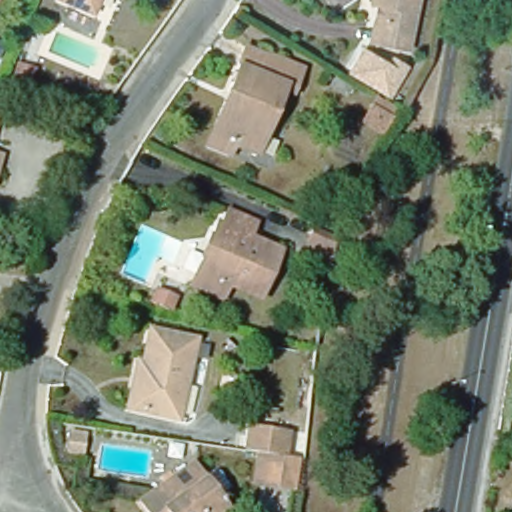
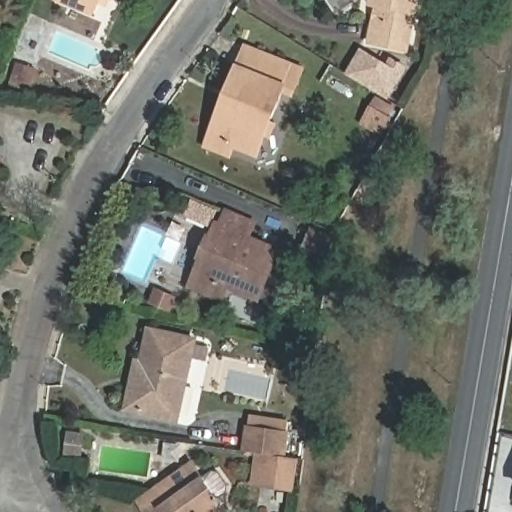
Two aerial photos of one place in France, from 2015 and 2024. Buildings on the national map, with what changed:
unchanged [(59,7),(62,0),(103,0),(94,21),(59,7)]
unchanged [(379,45),(386,9),(374,6),(375,0),(420,0),(410,52),(379,45)]
unchanged [(213,143),(236,87),(253,46),(308,69),(298,93),(289,89),(263,152),(241,143),(237,152),(213,143)]
unchanged [(389,62),(392,57),(408,65),(391,98),(346,73),(361,47),(389,62)]
unchanged [(33,72),(26,93),(8,88),(16,65),(33,72)]
unchanged [(188,290),(194,276),(215,227),(219,229),(225,216),(252,228),(247,241),(277,255),(256,302),(226,290),(220,303),(188,290)]
unchanged [(141,364),(149,332),(192,342),(175,420),(126,408),(130,387),(135,363),(141,364)]
unchanged [(295,489),(267,484),(258,483),(262,453),(246,451),(250,428),(290,435),(287,457),(299,459),(295,489)]
unchanged [(86,453),(84,473),(69,470),(72,451),(86,453)]
unchanged [(129,504),(180,469),(192,485),(202,478),(208,479),(217,492),(216,498),(206,505),(211,512),(135,512),(129,504)]

